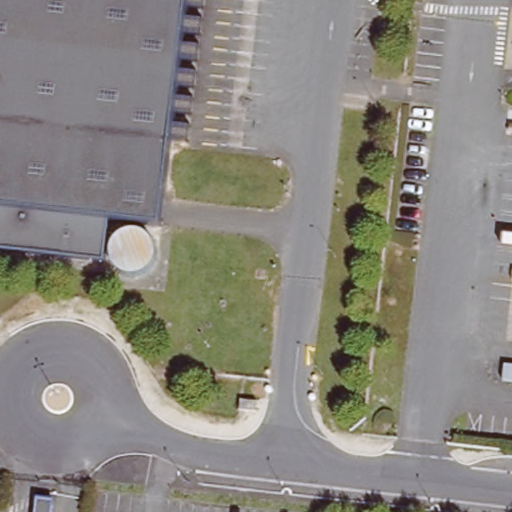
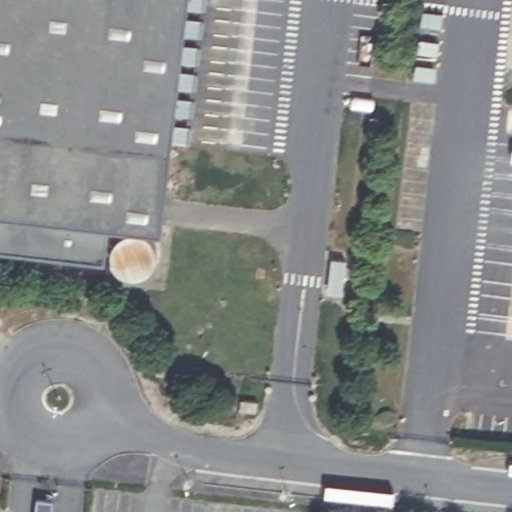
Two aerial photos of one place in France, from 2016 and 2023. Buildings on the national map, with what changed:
unchanged [(153,227),(99,220),(95,256),(0,244),(0,0),(182,0),(153,227)]
unchanged [(57,494),(54,512),(35,512),(37,492),(57,494)]

